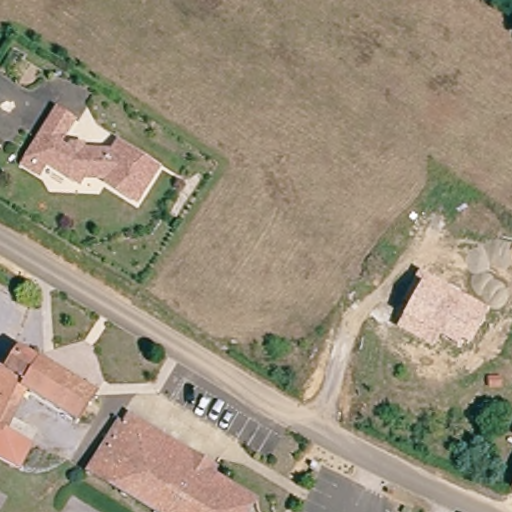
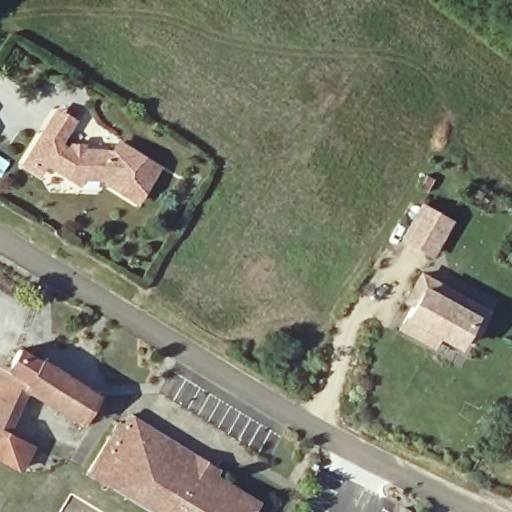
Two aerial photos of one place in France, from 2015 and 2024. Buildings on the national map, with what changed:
unchanged [(26,164),(32,154),(50,121),(60,104),(78,114),(68,131),(65,137),(72,141),(71,144),(80,149),(83,149),(85,145),(119,146),(125,135),(162,156),(142,190),(110,172),(110,168),(82,166),(80,171),(53,155),(49,163),(43,173),(26,164)]
new [(433,258),(399,240),(421,202),(454,221),(433,258)]
unchanged [(490,309),(471,347),(461,341),(458,346),(440,336),(433,349),(398,331),(405,314),(399,311),(418,272),(490,309)]
demolished [(12,305),(6,315),(0,311),(0,308),(3,301),(12,305)]
unchanged [(12,476),(0,469),(0,381),(7,370),(10,372),(22,352),(101,399),(84,429),(27,394),(23,401),(13,419),(12,418),(12,421),(4,435),(28,450),(24,457),(12,476)]
demolished [(142,374),(124,362),(129,354),(146,364),(142,374)]
unchanged [(207,475),(250,498),(244,512),(156,512),(90,478),(111,438),(119,443),(128,424),(173,447),(191,456),(189,458),(210,468),(207,475)]

